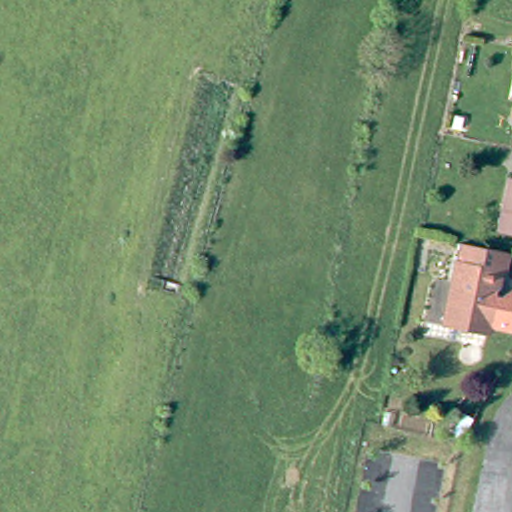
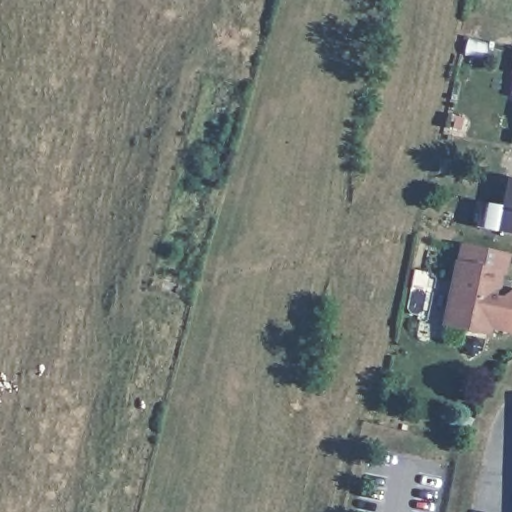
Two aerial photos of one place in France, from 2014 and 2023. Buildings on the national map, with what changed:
unchanged [(512,197),(512,234),(503,232),(512,197)]
unchanged [(503,276),(490,338),(445,329),(462,247),(512,257),(507,277),(503,276)]
unchanged [(512,335),(491,331),(500,287),(512,289),(512,335)]

